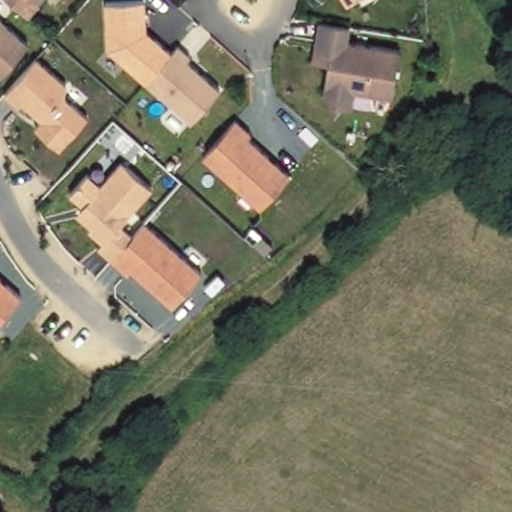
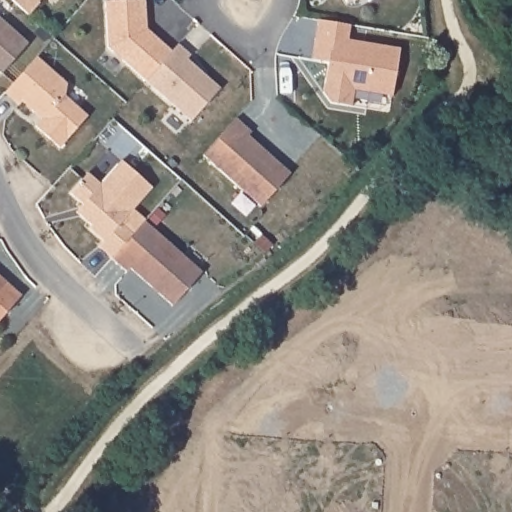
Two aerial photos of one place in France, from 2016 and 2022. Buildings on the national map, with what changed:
unchanged [(36,2),(38,3),(27,15),(11,0),(38,0),(36,2)]
unchanged [(345,3),(344,0),(351,0),(345,3)]
unchanged [(107,48),(105,3),(144,1),(146,30),(155,38),(171,52),(145,81),(126,65),(107,48)]
unchanged [(1,74),(0,72),(0,18),(3,21),(28,44),(1,74)]
unchanged [(347,41),(399,49),(391,97),(353,90),(351,107),(327,103),(323,93),(328,62),(312,60),(314,43),(318,21),(318,20),(349,26),(347,41)]
unchanged [(190,56),(186,60),(219,89),(190,122),(172,105),(145,81),(171,52),(177,45),(190,56)]
unchanged [(22,101),(18,105),(4,93),(36,58),(64,84),(62,95),(77,107),(86,116),(58,147),(34,126),(41,118),(33,111),(22,101)]
unchanged [(260,207),(203,156),(236,118),(251,132),(248,136),(270,155),(276,161),(290,173),(260,207)]
unchanged [(152,188),(123,221),(135,232),(111,259),(98,247),(103,241),(89,229),(91,226),(76,212),(83,205),(70,194),(88,174),(100,185),(122,161),(152,188)]
unchanged [(129,268),(126,272),(111,259),(135,232),(144,222),(201,273),(172,306),(158,293),(151,288),(129,268)]
unchanged [(0,278),(7,284),(21,296),(0,319),(0,277),(0,278)]

